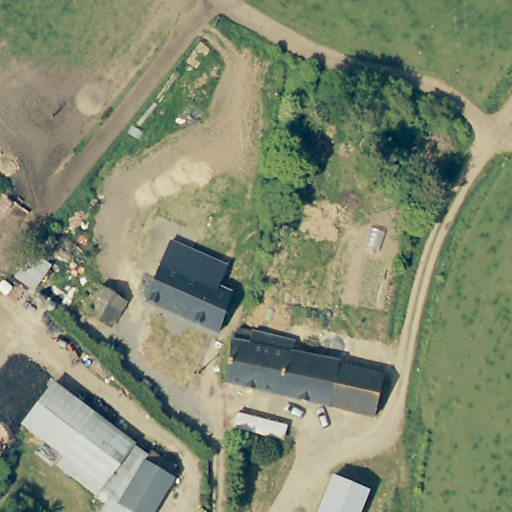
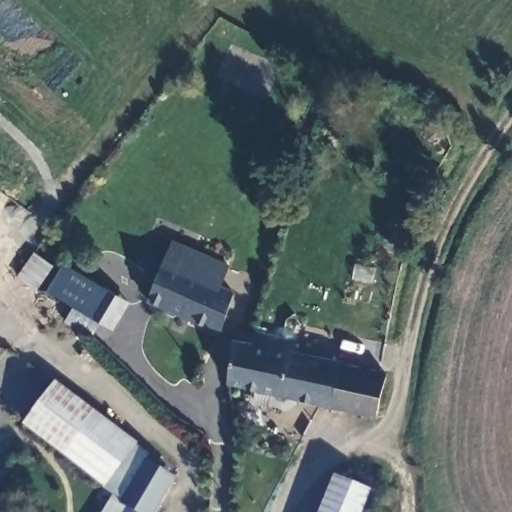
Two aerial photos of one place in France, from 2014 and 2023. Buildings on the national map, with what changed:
unchanged [(170,242),(226,266),(217,287),(231,292),(219,332),(145,300),(170,242)]
unchanged [(16,277),(33,253),(50,263),(34,288),(16,277)]
new [(63,263),(130,303),(114,330),(100,322),(90,337),(64,322),(74,307),(45,291),(63,263)]
demolished [(86,313),(97,294),(101,287),(116,295),(100,323),(86,313)]
unchanged [(230,342),(240,328),(294,342),(291,352),(385,373),(375,417),(226,381),(230,342)]
unchanged [(27,428),(59,388),(139,448),(134,455),(107,490),(27,428)]
unchanged [(150,465),(115,512),(113,512),(100,502),(107,490),(134,455),(150,465)]
unchanged [(150,465),(178,482),(156,512),(115,512),(150,465)]
unchanged [(332,476),(368,491),(360,512),(318,512),(332,476)]

